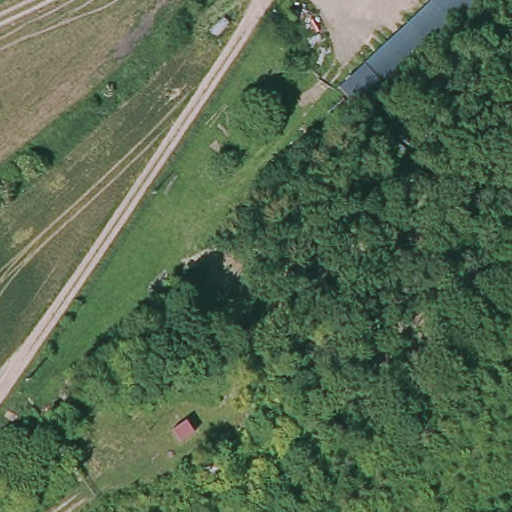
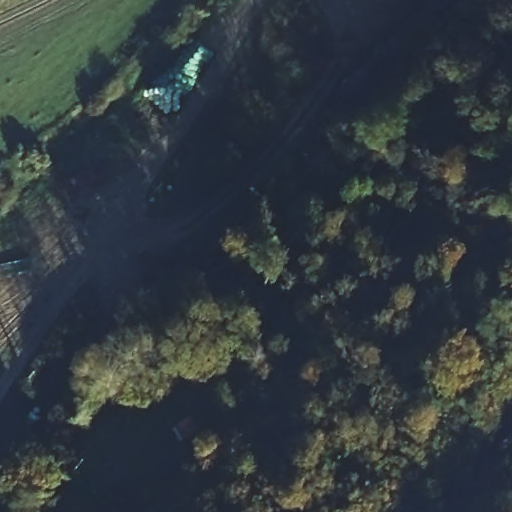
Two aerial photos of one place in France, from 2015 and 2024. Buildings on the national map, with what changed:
unchanged [(368,116),(339,89),(430,0),(484,0),(368,116)]

